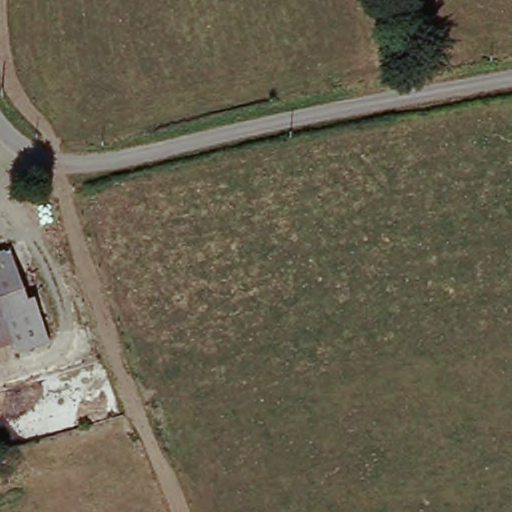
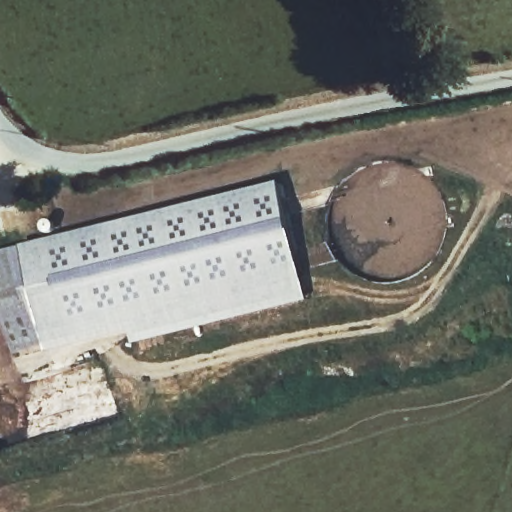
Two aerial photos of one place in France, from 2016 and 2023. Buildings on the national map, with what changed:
new [(312,301),(138,345),(135,332),(51,353),(50,347),(55,346),(40,303),(32,305),(15,257),(26,252),(25,247),(283,182),(312,301)]
unchanged [(32,305),(40,303),(55,346),(21,357),(17,346),(0,296),(0,260),(15,257),(32,305)]
unchanged [(0,352),(0,296),(17,346),(0,352)]

